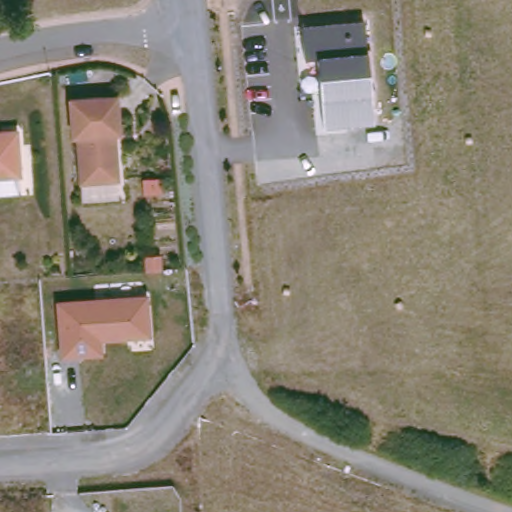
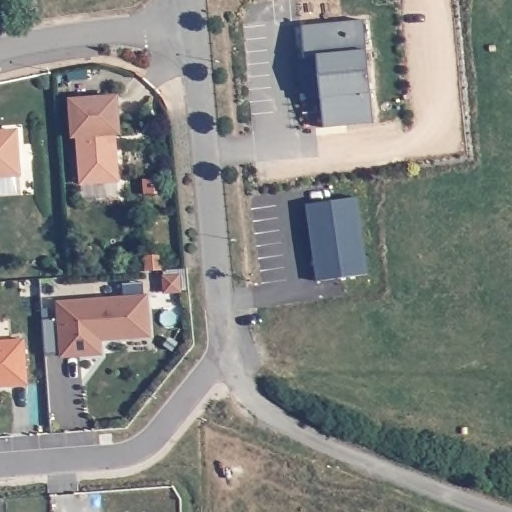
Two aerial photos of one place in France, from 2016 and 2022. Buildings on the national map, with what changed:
unchanged [(317,56),(304,57),(300,25),(364,19),(367,51),(373,122),(323,126),(317,56)]
unchanged [(82,182),(77,135),(72,135),(70,98),(115,94),(121,131),(110,133),(112,142),(116,142),(117,161),(118,178),(103,180),(82,182)]
unchanged [(4,131),(20,130),(26,174),(0,176),(0,137),(4,131)]
new [(363,272),(312,280),(300,204),(352,196),(363,272)]
unchanged [(55,300),(149,294),(151,338),(101,341),(102,354),(58,358),(55,300)]
new [(23,341),(27,386),(10,387),(0,387),(0,343),(23,341)]

